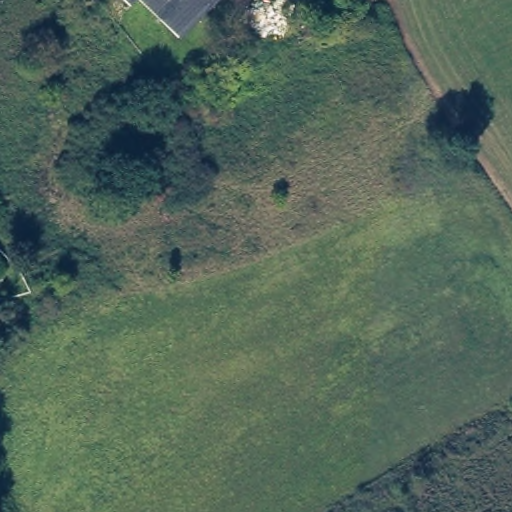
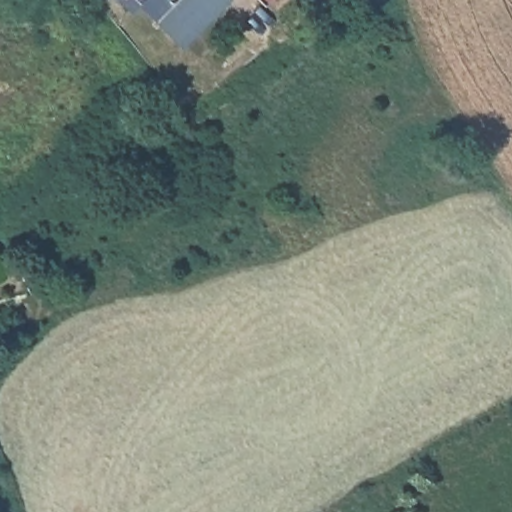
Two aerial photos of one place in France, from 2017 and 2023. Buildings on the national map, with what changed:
unchanged [(179,45),(127,0),(218,0),(179,45)]
unchanged [(323,2),(322,0),(327,0),(323,2)]

